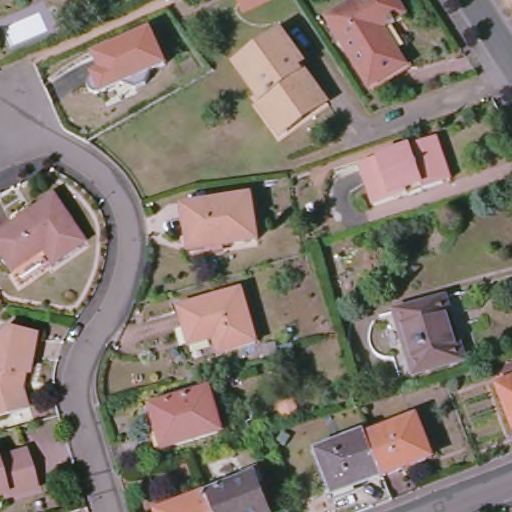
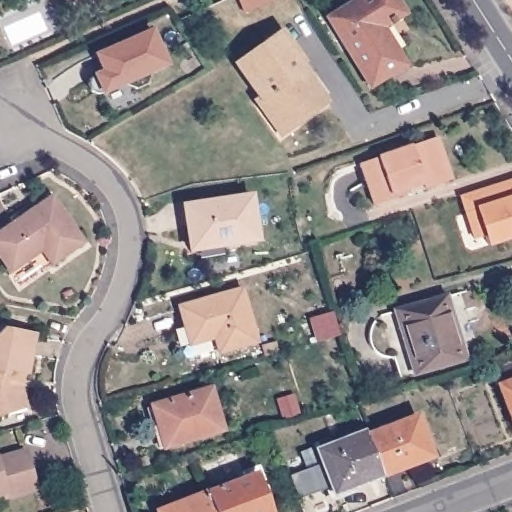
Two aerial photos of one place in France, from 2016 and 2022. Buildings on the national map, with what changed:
unchanged [(68,0),(70,0),(68,1),(68,0)]
new [(240,0),(274,0),(245,12),(240,0)]
unchanged [(407,67),(372,89),(328,19),(357,0),(397,0),(405,13),(383,27),(407,67)]
unchanged [(101,96),(93,75),(102,71),(96,54),(155,30),(169,66),(101,96)]
unchanged [(304,119),(282,135),(258,101),(262,99),(237,63),(277,34),(293,56),(294,55),(323,97),(327,102),(304,119)]
unchanged [(422,183),(407,188),(409,193),(375,204),(361,164),(430,140),(437,137),(451,179),(445,181),(424,187),(422,183)]
new [(475,210),(465,213),(459,195),(512,178),(512,237),(486,245),(475,210)]
unchanged [(52,265),(42,250),(10,272),(0,257),(0,233),(51,197),(83,244),(52,265)]
unchanged [(254,217),(257,240),(222,245),(222,241),(191,245),(185,207),(251,197),(254,217)]
unchanged [(256,341),(220,352),(215,337),(191,343),(180,307),(241,291),(256,341)]
unchanged [(415,374),(395,311),(445,297),(465,359),(415,374)]
unchanged [(5,329),(37,335),(30,376),(23,375),(21,387),(27,409),(0,417),(0,335),(5,329)]
unchanged [(512,380),(512,419),(499,386),(512,380)]
unchanged [(152,406),(210,388),(222,430),(164,448),(152,406)]
unchanged [(417,417),(432,457),(385,476),(383,472),(369,435),(417,417)]
unchanged [(355,483),(356,487),(335,495),(318,451),(367,432),(369,435),(383,472),(355,483)]
unchanged [(36,488),(8,497),(8,495),(7,492),(0,494),(0,457),(25,451),(36,488)]
unchanged [(207,493),(255,475),(270,512),(214,512),(207,493)]
unchanged [(159,512),(207,493),(214,512),(159,512)]

